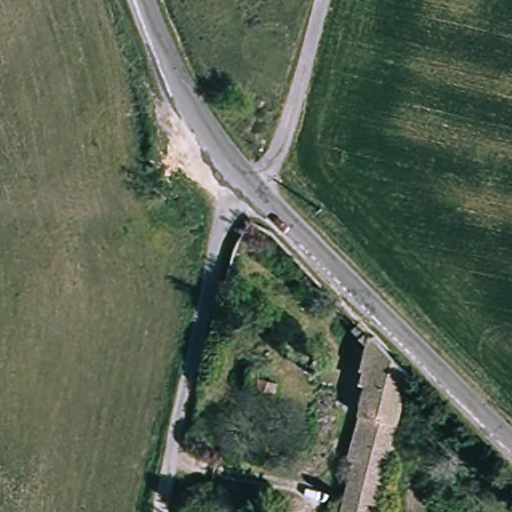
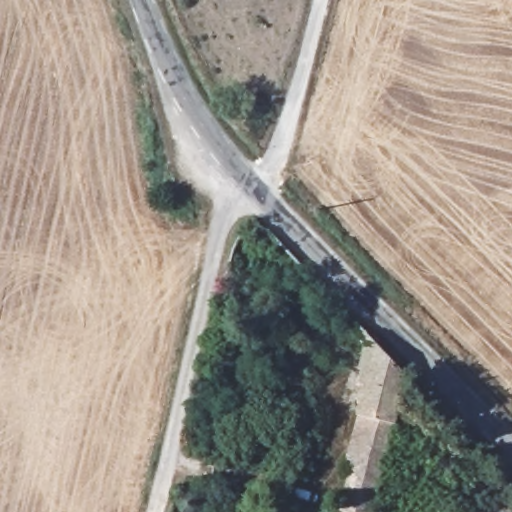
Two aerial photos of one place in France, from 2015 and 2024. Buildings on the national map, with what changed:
unchanged [(355,412),(373,347),(404,377),(371,512),(335,512),(360,417),(355,412)]

